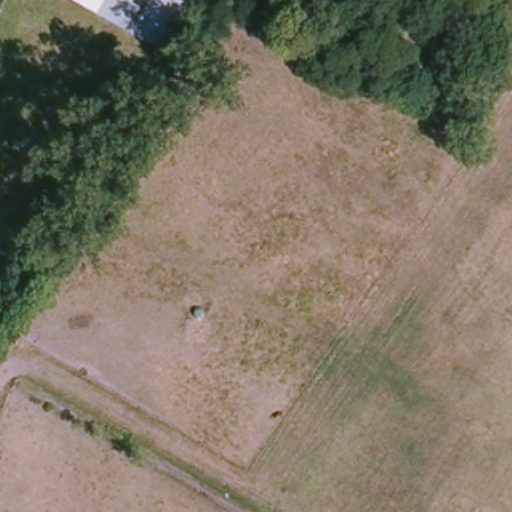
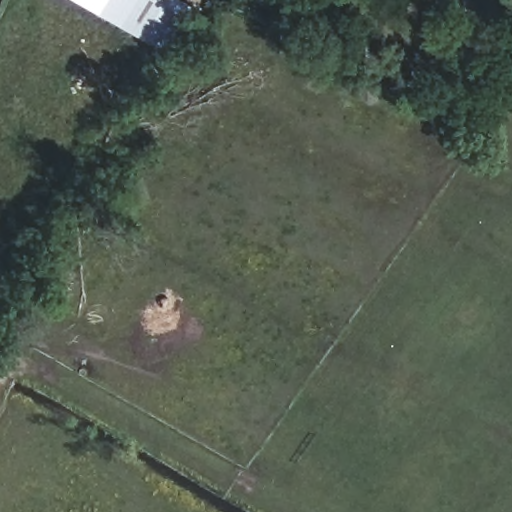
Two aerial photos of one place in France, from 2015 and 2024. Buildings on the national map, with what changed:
unchanged [(99,15),(68,0),(108,0),(99,15)]
unchanged [(191,6),(165,50),(99,15),(108,0),(181,0),(191,6)]

